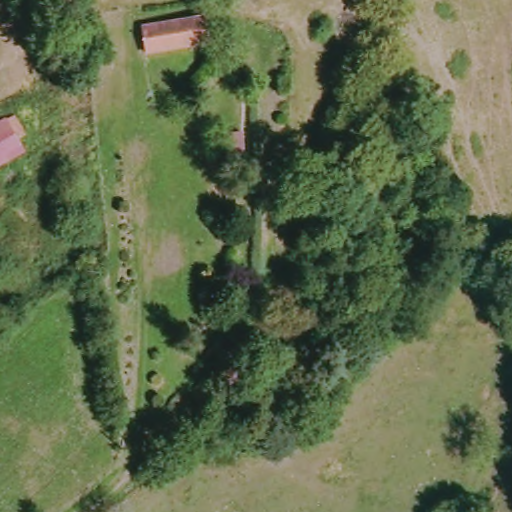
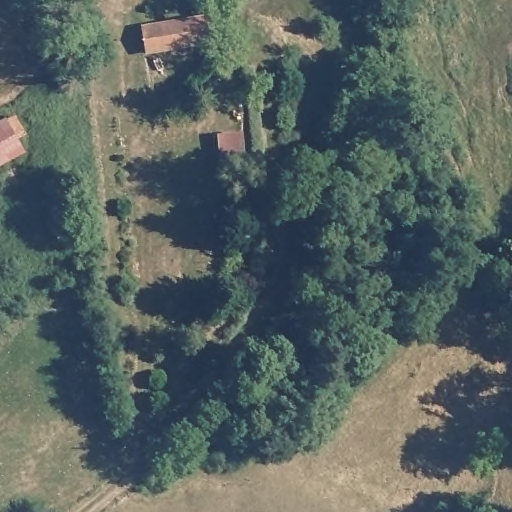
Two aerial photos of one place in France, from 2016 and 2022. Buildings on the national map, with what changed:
unchanged [(145,24),(208,17),(211,47),(149,56),(145,24)]
unchanged [(0,171),(0,126),(8,121),(26,158),(0,171)]

